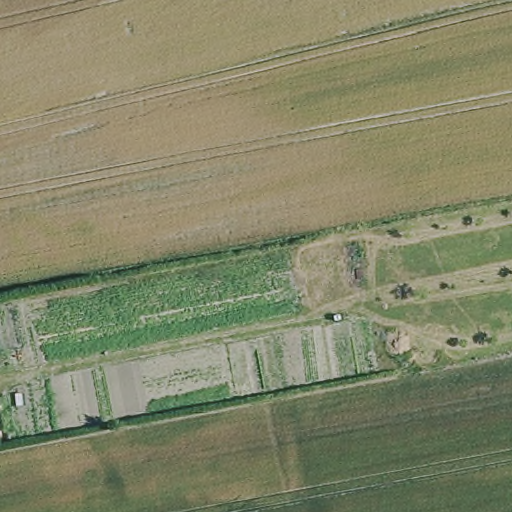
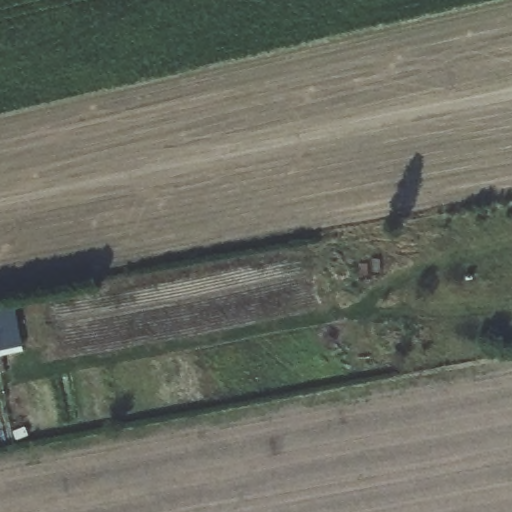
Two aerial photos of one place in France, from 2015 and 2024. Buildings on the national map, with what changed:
new [(23,351),(0,356),(0,306),(13,304),(23,351)]

